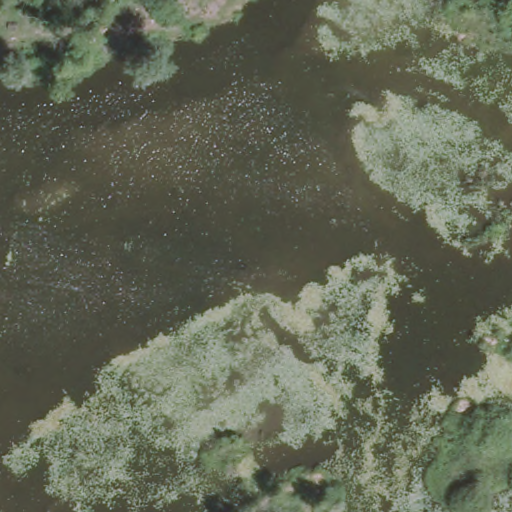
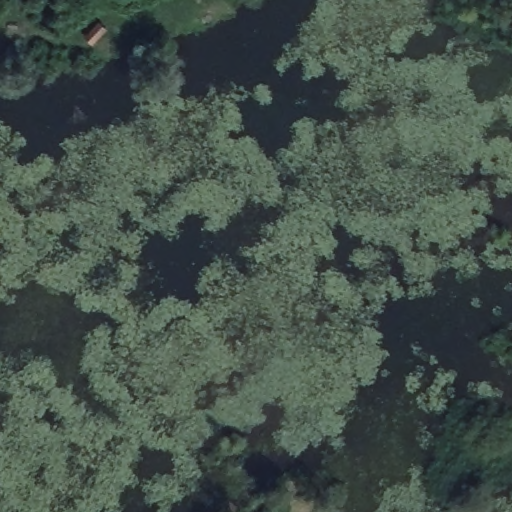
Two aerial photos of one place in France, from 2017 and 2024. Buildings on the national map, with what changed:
unchanged [(113,25),(95,42),(85,30),(103,14),(113,25)]

